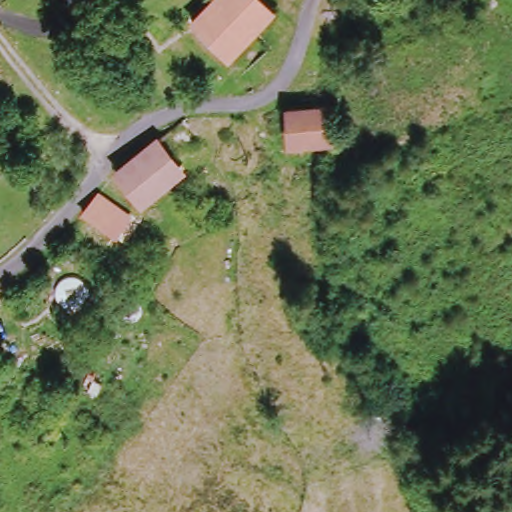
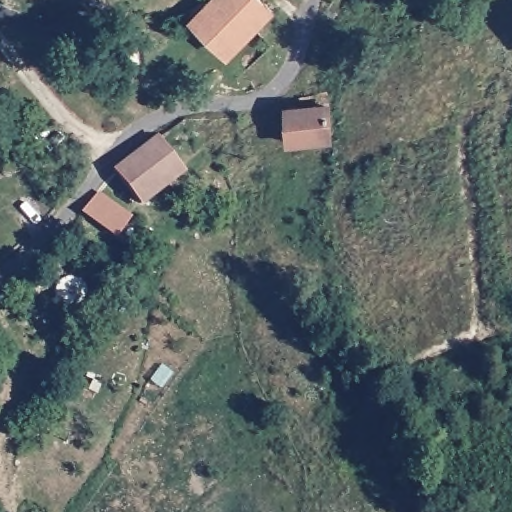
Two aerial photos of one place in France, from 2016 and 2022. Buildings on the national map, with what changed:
unchanged [(189,24),(211,0),(257,0),(271,14),(227,59),(189,24)]
unchanged [(302,103),(318,102),(329,101),(332,148),(288,149),(287,120),(301,119),(302,103)]
unchanged [(180,171),(141,204),(114,170),(154,138),(180,171)]
unchanged [(86,214),(99,193),(136,224),(120,238),(86,214)]

